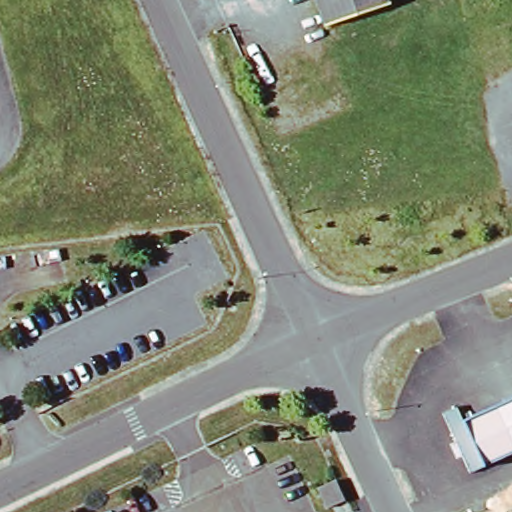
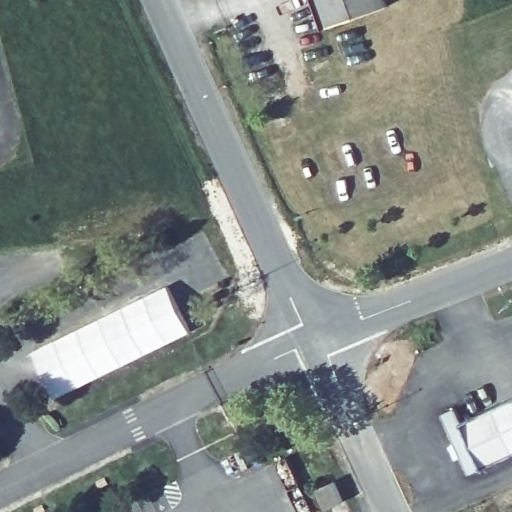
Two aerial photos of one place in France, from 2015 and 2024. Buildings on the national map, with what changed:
unchanged [(326,22),(318,0),(385,0),(386,1),(326,22)]
new [(54,399),(32,352),(146,296),(169,343),(54,399)]
unchanged [(512,402),(512,457),(471,476),(445,416),(458,410),(463,424),(512,402)]
unchanged [(312,506),(302,482),(321,472),(333,497),(312,506)]

